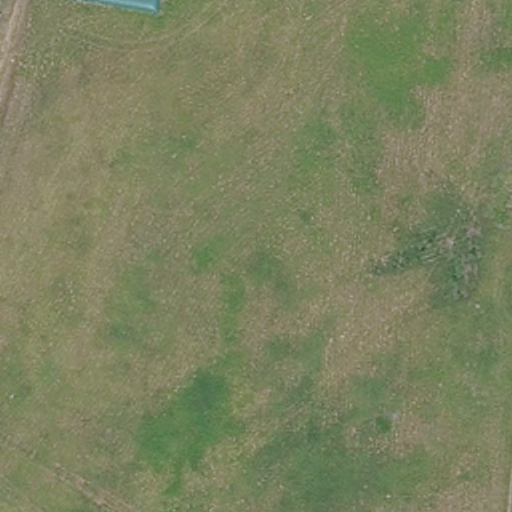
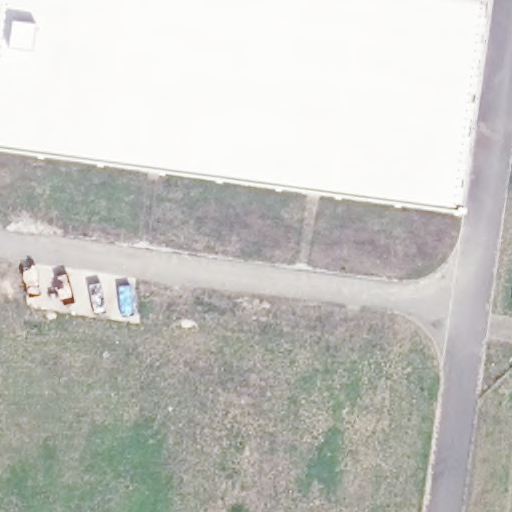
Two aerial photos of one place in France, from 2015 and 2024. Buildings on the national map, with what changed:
new [(0,143),(0,0),(487,0),(460,208),(0,143)]

